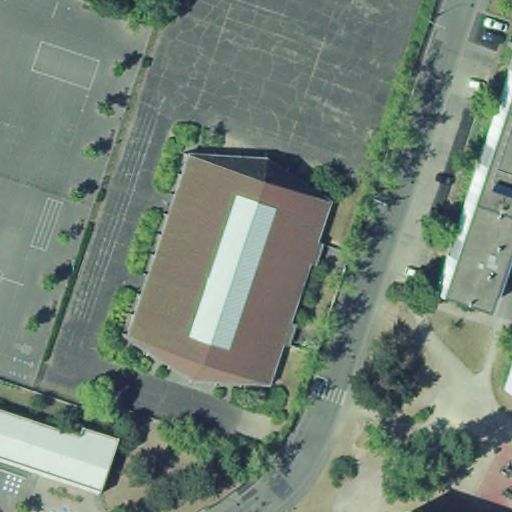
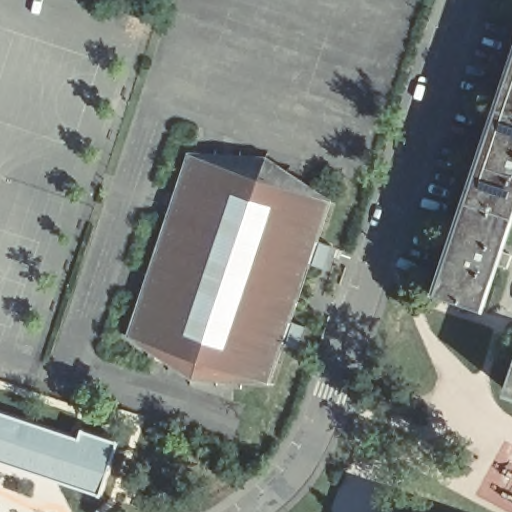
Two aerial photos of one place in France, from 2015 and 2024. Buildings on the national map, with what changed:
unchanged [(428,297),(512,48),(512,201),(474,312),(428,297)]
unchanged [(320,202),(262,381),(185,379),(126,337),(186,157),(259,159),(320,202)]
unchanged [(512,353),(512,395),(500,391),(512,353)]
unchanged [(72,440),(75,429),(77,430),(77,432),(109,442),(110,440),(112,441),(95,495),(92,494),(93,492),(0,462),(0,416),(72,440)]

